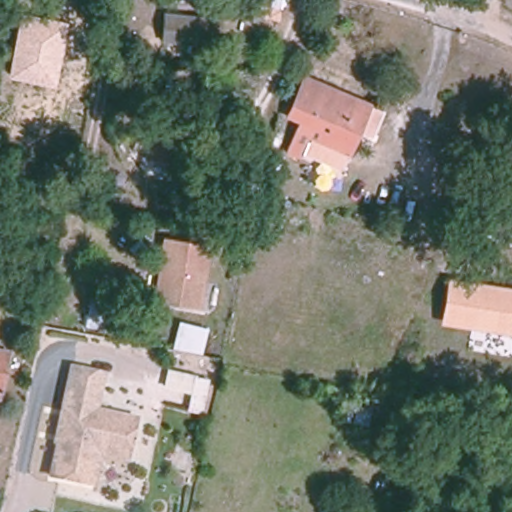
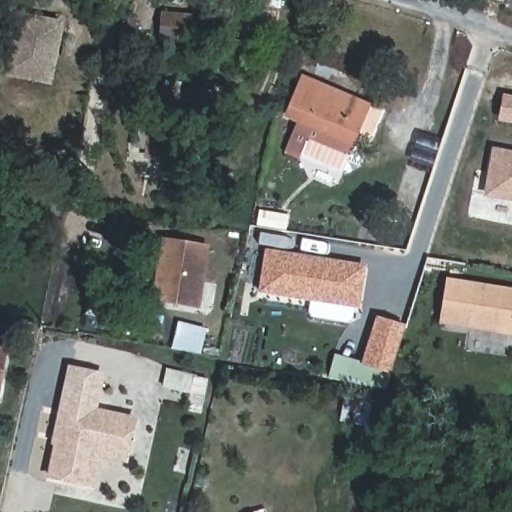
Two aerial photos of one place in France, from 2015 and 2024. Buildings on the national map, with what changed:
unchanged [(55,85),(7,77),(19,14),(65,22),(55,85)]
unchanged [(161,15),(210,17),(209,41),(160,39),(161,15)]
unchanged [(298,75),(375,108),(361,142),(285,110),(298,75)]
new [(509,99),(512,99),(512,121),(505,120),(509,99)]
unchanged [(354,143),(343,173),(275,148),(283,115),(354,143)]
unchanged [(148,151),(149,147),(136,146),(140,125),(153,127),(154,124),(185,129),(179,167),(157,164),(146,162),(148,151)]
new [(500,152),(512,154),(512,199),(493,196),(500,152)]
demolished [(396,212),(403,186),(454,204),(446,227),(396,212)]
unchanged [(211,244),(202,304),(160,298),(169,237),(211,244)]
new [(368,266),(360,308),(259,293),(267,250),(368,266)]
unchanged [(440,324),(449,280),(512,290),(512,336),(440,324)]
new [(407,324),(392,375),(387,391),(330,380),(337,355),(363,362),(378,317),(407,324)]
unchanged [(202,355),(172,349),(179,322),(209,329),(202,355)]
unchanged [(0,349),(8,350),(0,396),(0,349)]
unchanged [(210,380),(202,417),(180,412),(184,397),(158,390),(162,369),(210,380)]
unchanged [(84,486),(52,479),(60,444),(56,443),(66,407),(74,371),(104,377),(97,412),(137,421),(130,458),(103,453),(96,488),(84,486)]
unchanged [(370,403),(366,427),(340,421),(343,397),(370,403)]

